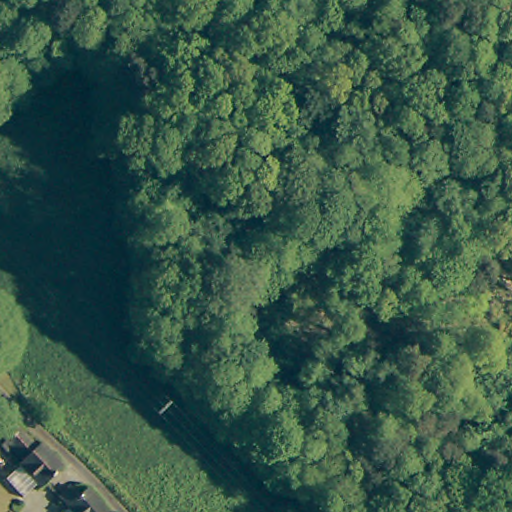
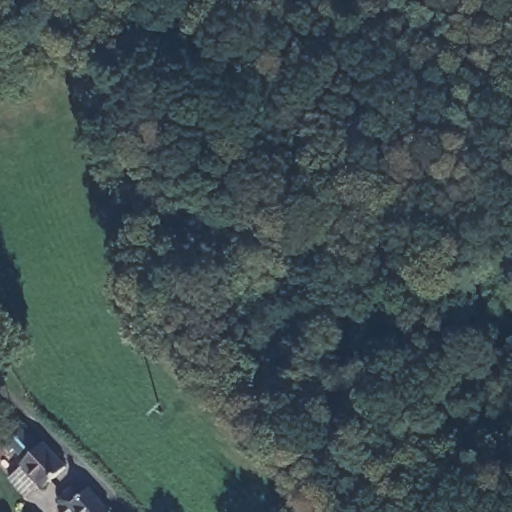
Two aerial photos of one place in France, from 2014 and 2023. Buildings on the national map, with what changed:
unchanged [(29,466),(28,465),(32,461),(21,448),(17,453),(12,447),(16,443),(7,435),(23,420),(70,467),(48,487),(45,483),(31,496),(15,478),(29,466)]
unchanged [(106,512),(69,512),(61,504),(77,492),(73,487),(78,484),(106,512)]

